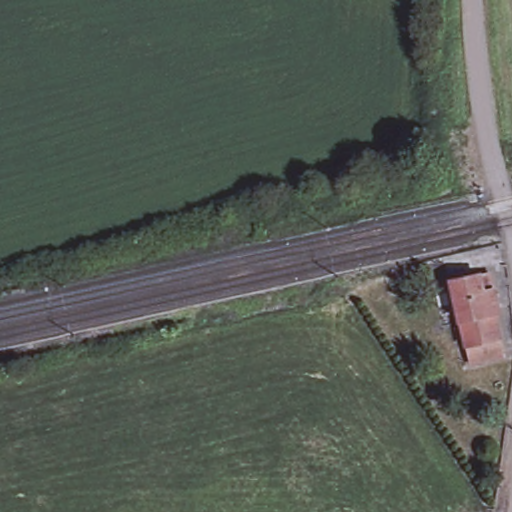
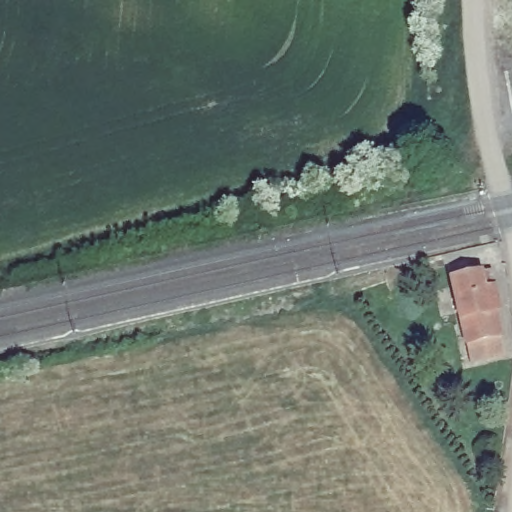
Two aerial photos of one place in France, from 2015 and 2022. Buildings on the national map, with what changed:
unchanged [(446,280),(483,272),(491,313),(489,314),(498,357),(464,365),(446,280)]

